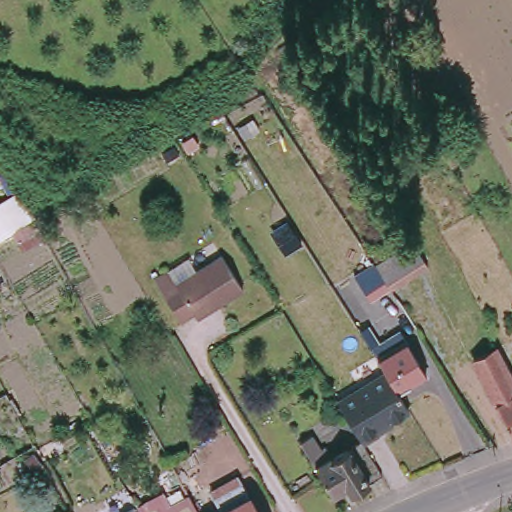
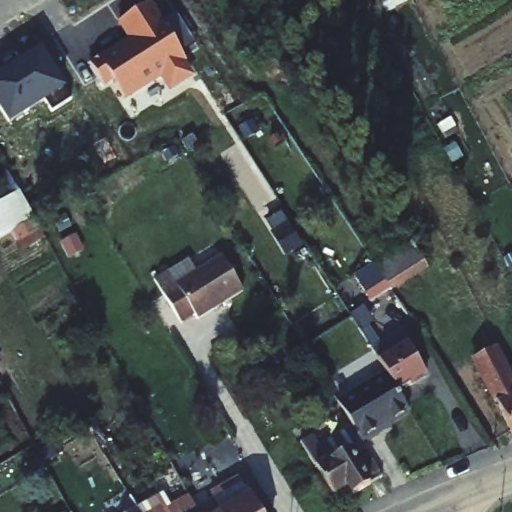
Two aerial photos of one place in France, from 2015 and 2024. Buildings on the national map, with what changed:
unchanged [(370,5),(367,0),(376,0),(377,1),(370,5)]
new [(113,81),(105,86),(89,64),(127,39),(117,24),(150,1),(164,25),(177,16),(196,45),(182,54),(196,76),(170,94),(160,79),(126,101),(113,81)]
new [(71,98),(52,112),(41,98),(18,116),(13,110),(6,116),(0,108),(0,74),(0,69),(31,45),(71,98)]
unchanged [(21,249),(12,233),(0,239),(0,204),(9,199),(18,194),(33,220),(43,238),(21,249)]
unchanged [(400,252),(401,250),(403,249),(411,244),(426,267),(415,275),(402,283),(391,291),(390,290),(376,299),(359,273),(372,263),(376,267),(388,259),(400,252)]
unchanged [(154,280),(167,272),(176,284),(223,257),(243,292),(198,319),(195,315),(181,324),(154,280)]
unchanged [(386,374),(332,287),(343,280),(372,327),(369,329),(380,346),(399,334),(426,375),(398,394),(386,374)]
unchanged [(494,354),(512,389),(512,439),(473,364),(494,354)]
unchanged [(376,432),(378,435),(362,444),(358,438),(345,416),(337,404),(386,374),(398,394),(409,412),(376,432)]
unchanged [(349,497),(345,489),(333,496),(300,444),(311,437),(326,461),(330,459),(331,460),(352,449),(336,422),(345,416),(358,438),(362,444),(382,477),(349,497)]
demolished [(436,464),(406,479),(383,433),(414,418),(436,464)]
unchanged [(216,494),(244,479),(262,512),(224,512),(216,494)]
unchanged [(174,509),(194,498),(202,512),(176,512),(174,509)]
unchanged [(139,509),(140,512),(134,512),(139,509)]
unchanged [(164,509),(170,511),(174,509),(176,512),(159,512),(164,509)]

